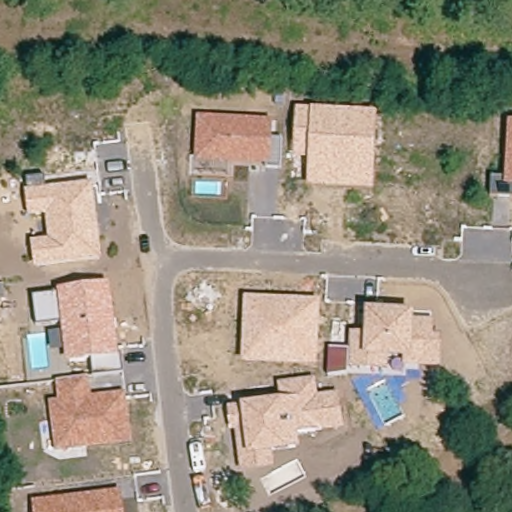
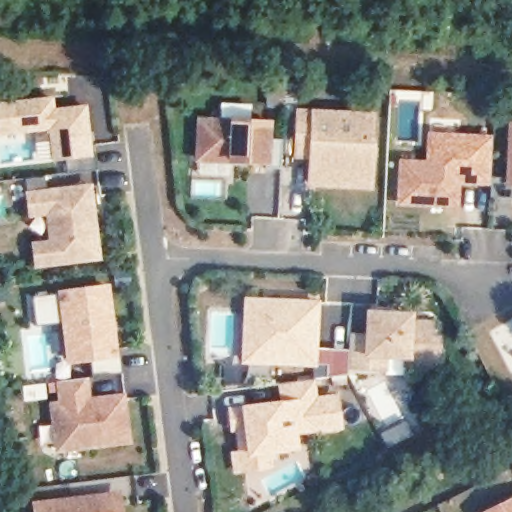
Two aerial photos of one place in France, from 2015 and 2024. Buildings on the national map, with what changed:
new [(56,109),(87,105),(94,157),(97,156),(99,169),(68,173),(66,162),(54,164),(49,131),(0,137),(0,102),(53,95),(56,109)]
unchanged [(377,114),(372,189),(307,184),(308,156),(294,155),(297,109),(312,109),(377,114)]
unchanged [(273,121),(272,139),(283,139),(281,169),(194,163),(197,117),(273,121)]
unchanged [(512,126),(512,198),(490,197),(492,175),(504,177),(508,126),(512,126)]
new [(427,161),(428,133),(493,135),(492,175),(491,186),(461,185),(459,210),(397,207),(399,160),(427,161)]
unchanged [(30,190),(29,178),(46,176),(48,189),(93,183),(103,260),(34,269),(30,242),(49,240),(45,218),(28,219),(24,192),(30,190)]
unchanged [(119,357),(120,369),(93,372),(91,361),(68,364),(63,321),(36,324),(32,297),(59,292),(110,284),(119,357)]
unchanged [(320,302),(317,367),(240,364),(244,298),(320,302)]
unchanged [(414,314),(434,318),(434,335),(442,336),(441,367),(412,362),(388,359),(387,373),(348,371),(348,375),(327,379),(328,348),(349,349),(350,332),(365,332),(366,310),(414,314)]
unchanged [(92,397),(128,392),(135,443),(55,453),(49,402),(57,401),(55,383),(89,377),(92,397)]
unchanged [(243,407),(281,401),(278,384),(315,378),(318,397),(340,393),(345,429),(298,434),(300,452),(273,455),(275,470),(241,474),(237,429),(230,431),(228,406),(239,404),(243,407)]
unchanged [(121,491),(124,512),(34,512),(33,501),(121,491)]
unchanged [(512,501),(512,512),(489,512),(512,501)]

